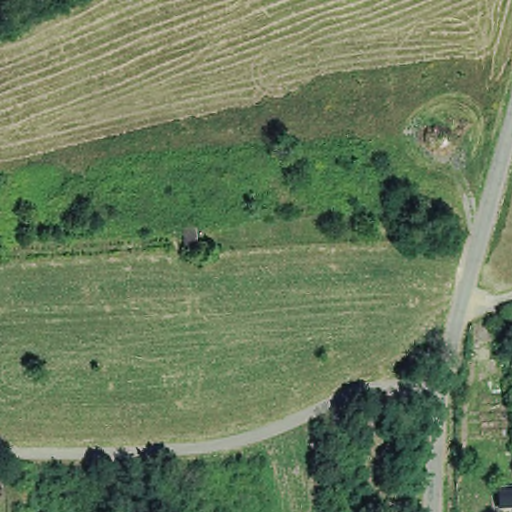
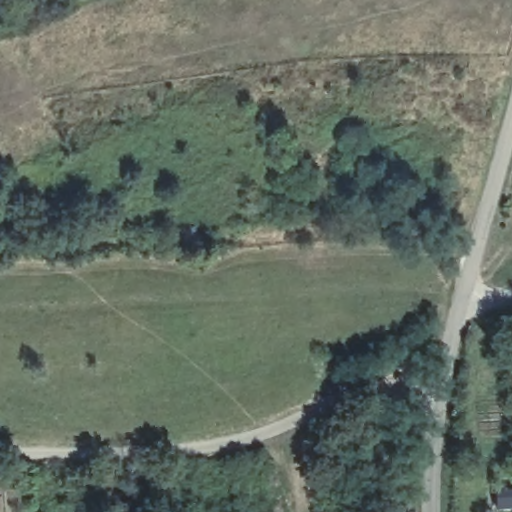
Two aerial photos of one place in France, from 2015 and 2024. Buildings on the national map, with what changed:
[]

